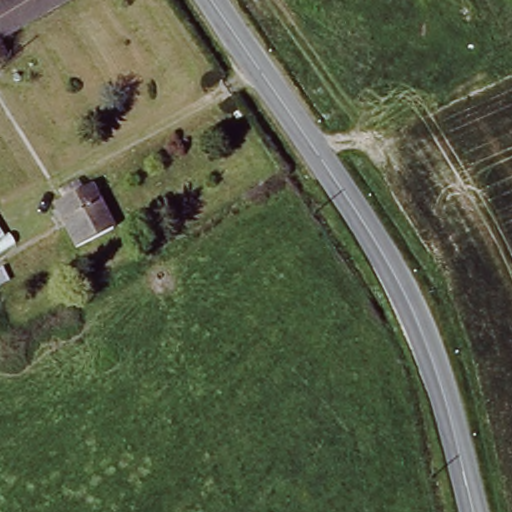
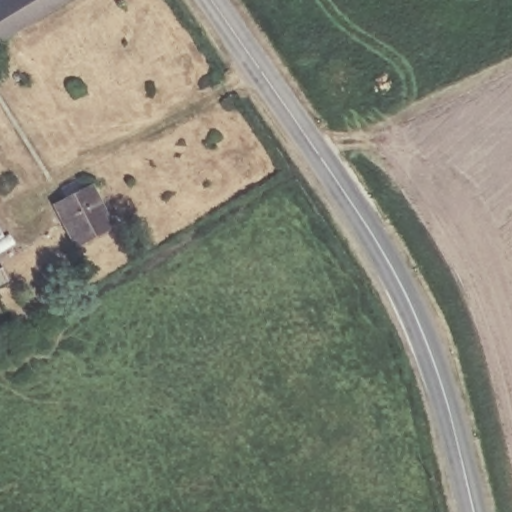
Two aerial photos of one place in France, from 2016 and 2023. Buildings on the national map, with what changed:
unchanged [(66,0),(0,42),(0,0),(66,0)]
unchanged [(5,60),(0,63),(0,51),(5,60)]
unchanged [(111,229),(76,247),(57,207),(91,190),(111,229)]
unchanged [(3,240),(0,242),(0,233),(3,240)]

